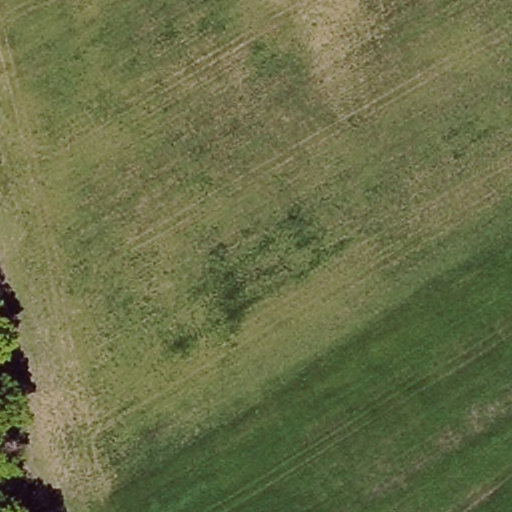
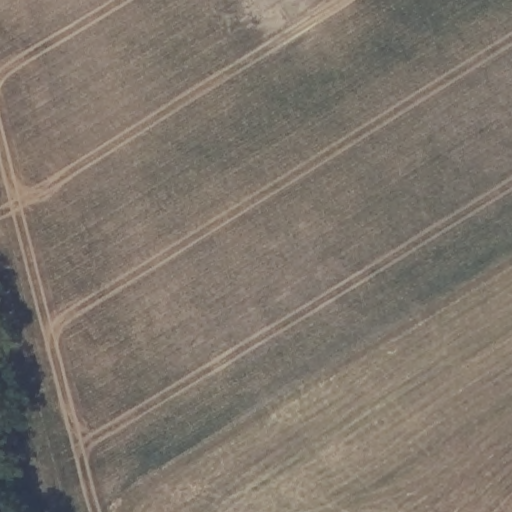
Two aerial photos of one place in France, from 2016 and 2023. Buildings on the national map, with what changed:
[]

